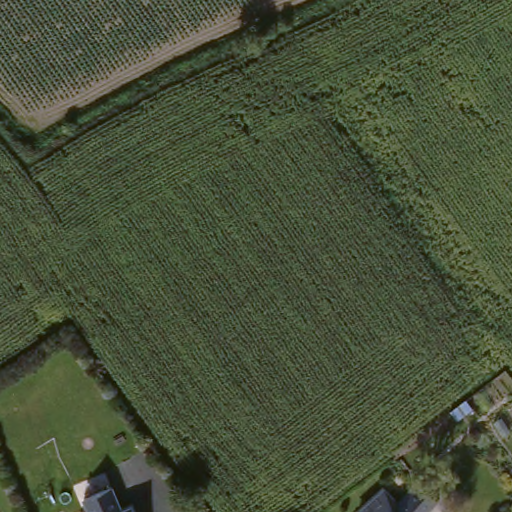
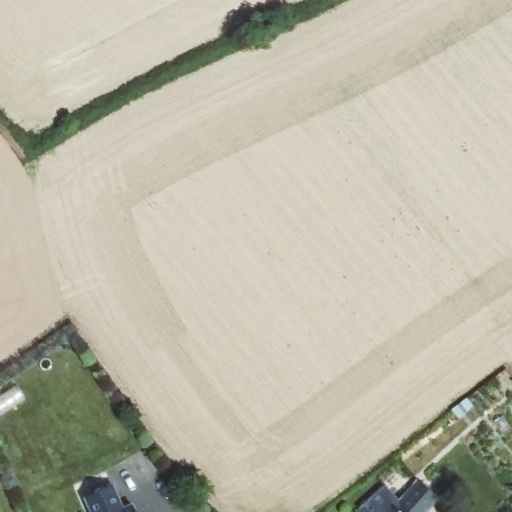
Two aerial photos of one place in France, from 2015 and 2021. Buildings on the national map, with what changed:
unchanged [(110,482),(121,506),(130,502),(134,512),(91,512),(82,495),(110,482)]
unchanged [(428,512),(355,512),(353,510),(381,487),(397,507),(416,488),(438,503),(428,512)]

